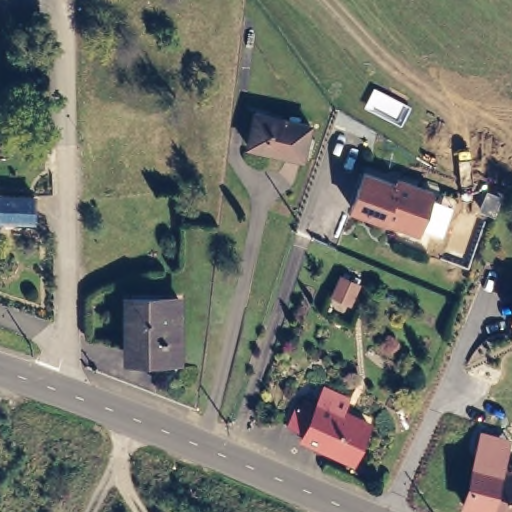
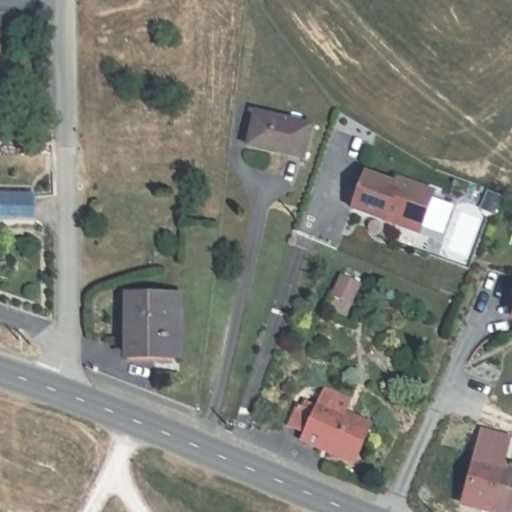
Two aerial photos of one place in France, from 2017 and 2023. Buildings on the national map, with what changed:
unchanged [(299,161),(248,144),(257,113),(310,130),(299,161)]
unchanged [(431,189),(417,231),(350,208),(362,172),(393,181),(395,177),(431,189)]
unchanged [(35,203),(35,226),(0,225),(0,202),(35,203)]
unchanged [(340,273),(360,282),(351,303),(332,294),(340,273)]
unchanged [(178,298),(175,360),(118,357),(121,296),(178,298)]
unchanged [(512,328),(511,327),(512,324),(512,328)]
unchanged [(328,409),(337,393),(362,407),(355,425),(374,434),(357,467),(309,444),(312,437),(297,430),(307,410),(312,412),(315,404),(328,409)]
unchanged [(477,455),(501,462),(502,457),(512,459),(512,512),(495,512),(465,503),(477,455)]

